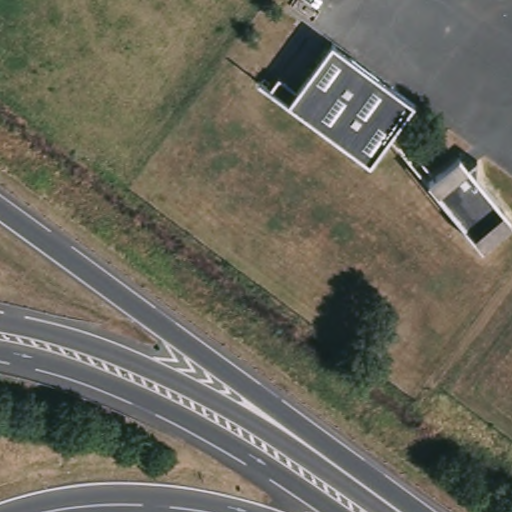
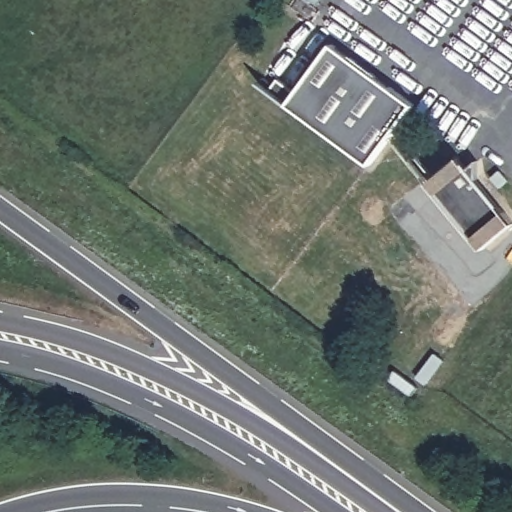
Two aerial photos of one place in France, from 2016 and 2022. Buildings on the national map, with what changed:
unchanged [(268,94),(277,81),(295,95),(330,46),(413,107),(369,168),(268,94)]
unchanged [(427,186),(458,160),(467,171),(476,164),(476,182),(512,226),(512,227),(481,252),(427,186)]

